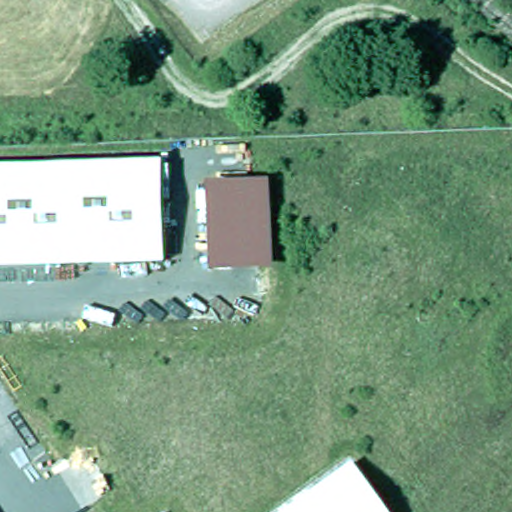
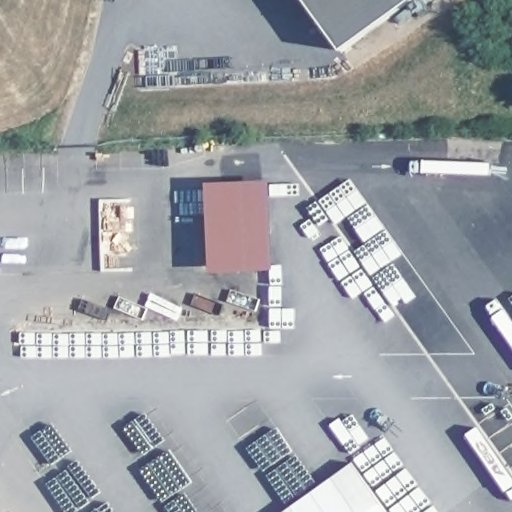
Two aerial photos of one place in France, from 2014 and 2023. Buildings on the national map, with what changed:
new [(341,51),(305,0),(412,0),(341,51)]
demolished [(166,257),(0,264),(0,164),(162,158),(166,257)]
unchanged [(266,180),(268,262),(216,264),(214,182),(266,180)]
unchanged [(389,512),(283,512),(352,462),(389,512)]

